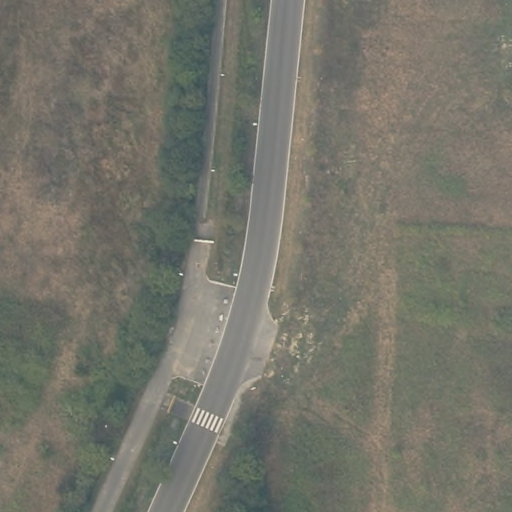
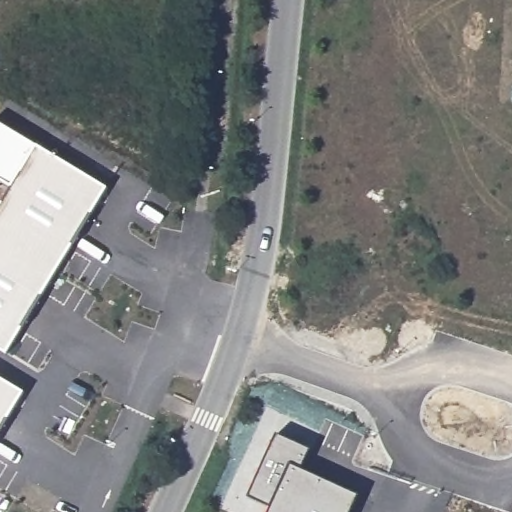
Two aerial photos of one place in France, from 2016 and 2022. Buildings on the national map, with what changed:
new [(0,351),(0,206),(11,187),(0,181),(0,122),(110,189),(7,355),(0,351)]
new [(26,392),(0,435),(0,376),(26,392)]
new [(360,495),(352,512),(270,512),(272,507),(250,497),(278,433),(313,449),(302,470),(360,495)]

